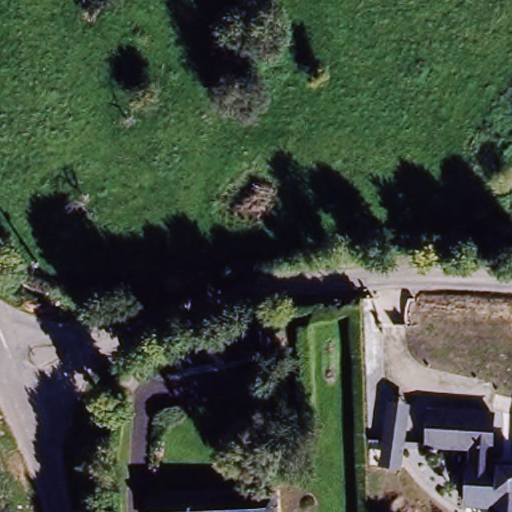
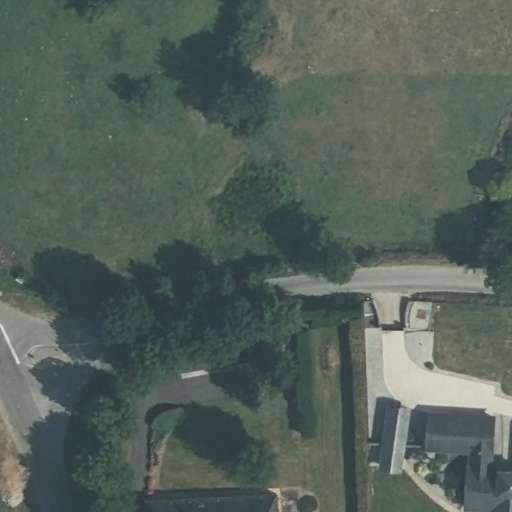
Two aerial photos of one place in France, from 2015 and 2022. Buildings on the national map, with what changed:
unchanged [(171,328),(231,317),(236,336),(266,332),(270,358),(178,369),(171,328)]
unchanged [(259,382),(308,382),(308,407),(259,407),(259,382)]
unchanged [(407,467),(391,467),(391,408),(407,408),(407,467)]
unchanged [(486,509),(463,509),(465,462),(467,462),(467,452),(424,449),(426,409),(494,413),(492,453),(492,461),(512,462),(512,512),(486,512),(486,509)]
unchanged [(148,489),(281,489),(282,512),(147,512),(148,489)]

